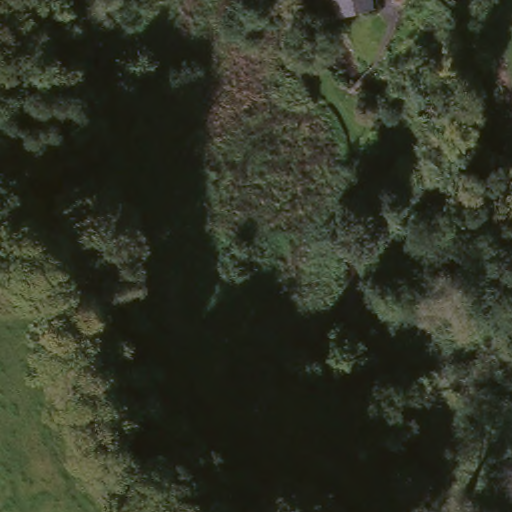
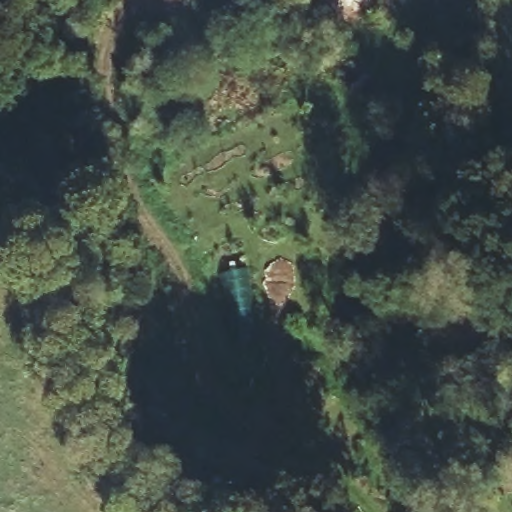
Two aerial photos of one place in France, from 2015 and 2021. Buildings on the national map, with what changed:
unchanged [(334,19),(330,0),(368,0),(369,6),(334,19)]

